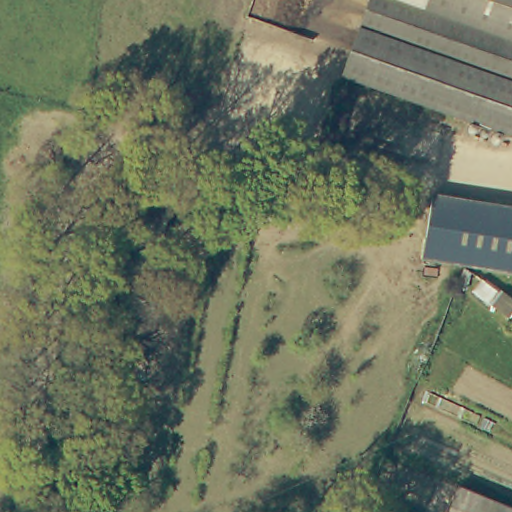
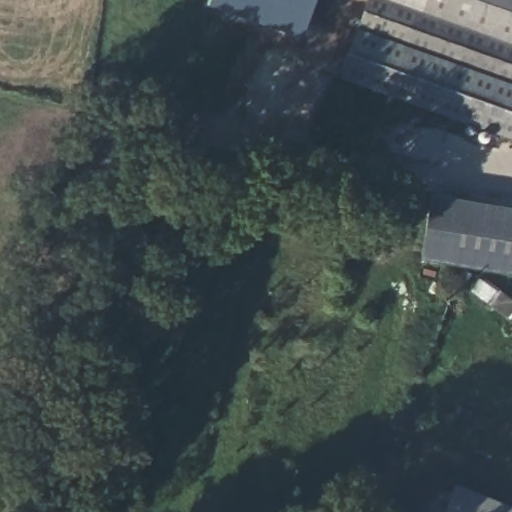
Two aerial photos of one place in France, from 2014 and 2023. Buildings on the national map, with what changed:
new [(304,37),(208,4),(209,0),(316,0),(304,37)]
unchanged [(340,77),(367,0),(512,0),(512,136),(340,77)]
unchanged [(430,192),(500,202),(512,203),(512,270),(478,266),(421,258),(430,192)]
unchanged [(510,512),(449,512),(457,491),(510,512)]

